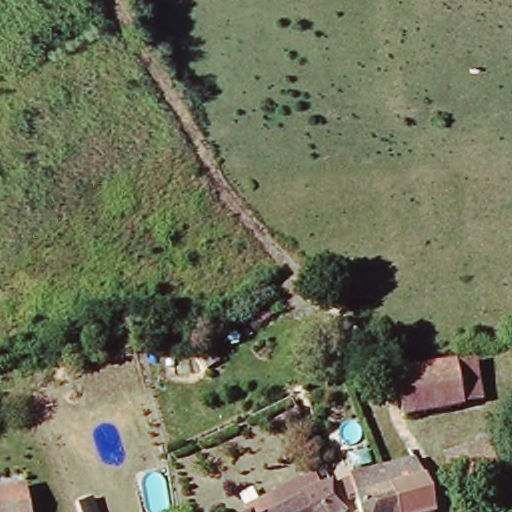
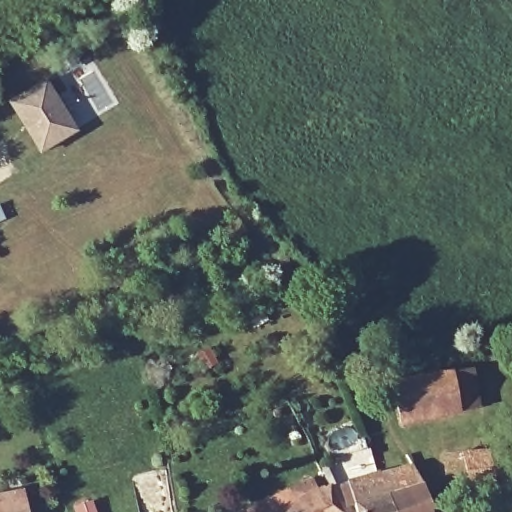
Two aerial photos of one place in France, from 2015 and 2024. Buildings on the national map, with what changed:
new [(9,101),(47,78),(78,131),(40,154),(9,101)]
unchanged [(459,368),(468,408),(416,419),(405,377),(424,374),(459,368)]
unchanged [(493,483),(447,489),(446,479),(448,478),(447,458),(465,452),(487,449),(493,483)]
unchanged [(352,483),(414,466),(421,482),(390,490),(397,512),(363,512),(352,483)]
unchanged [(343,512),(274,512),(275,511),(270,496),(302,479),(308,491),(326,484),(343,512)]
unchanged [(390,490),(421,482),(424,481),(434,512),(397,512),(390,490)]
unchanged [(23,493),(25,512),(0,512),(0,497),(23,493)]

